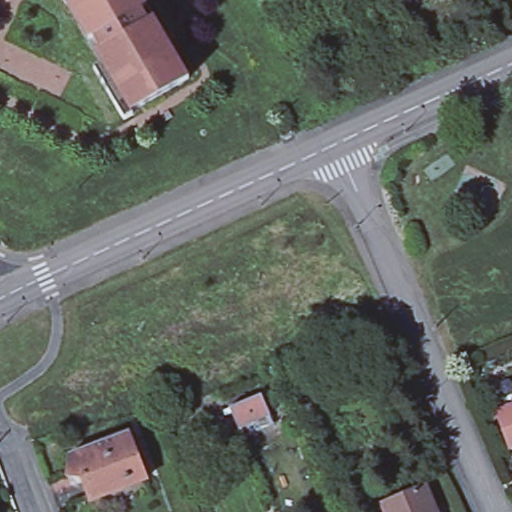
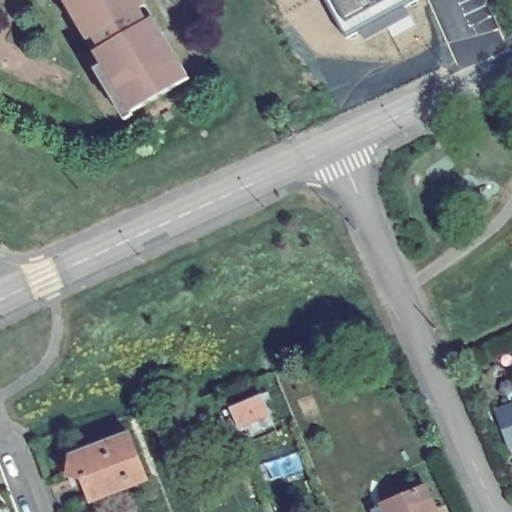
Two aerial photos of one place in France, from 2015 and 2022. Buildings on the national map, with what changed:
unchanged [(67,0),(77,0),(69,4),(67,0)]
unchanged [(112,96),(97,69),(105,65),(98,52),(105,48),(99,37),(90,41),(82,26),(89,22),(77,0),(144,0),(148,6),(140,11),(147,23),(155,19),(164,33),(157,37),(169,59),(177,55),(190,79),(132,112),(135,116),(127,120),(112,96)]
new [(327,0),(416,0),(345,35),(327,0)]
unchanged [(264,396),(272,417),(242,429),(233,409),(264,396)]
unchanged [(507,408),(512,407),(512,420),(507,408)]
unchanged [(126,441),(143,486),(87,507),(79,484),(64,481),(68,464),(126,441)]
unchanged [(437,511),(436,512),(387,512),(385,506),(427,488),(437,511)]

